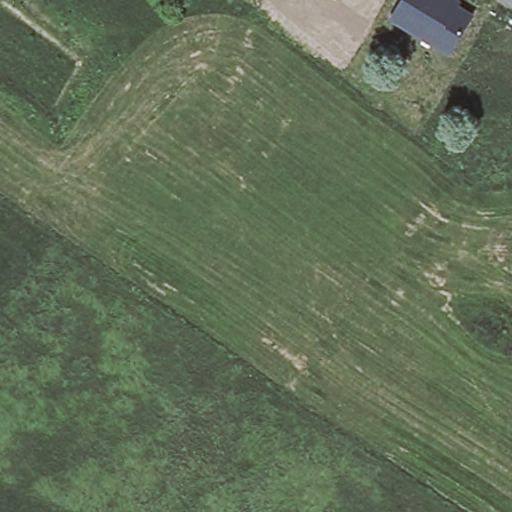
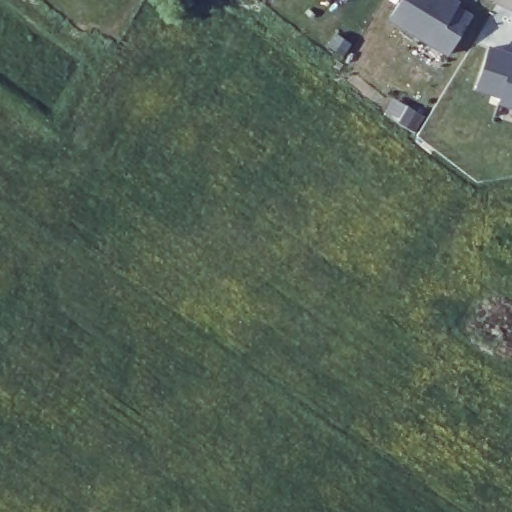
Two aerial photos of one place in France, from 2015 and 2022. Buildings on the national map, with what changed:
unchanged [(391,20),(403,0),(462,0),(463,1),(460,5),(475,14),(450,55),(391,20)]
new [(499,104),(500,95),(476,90),(489,45),(512,50),(512,108),(499,104)]

